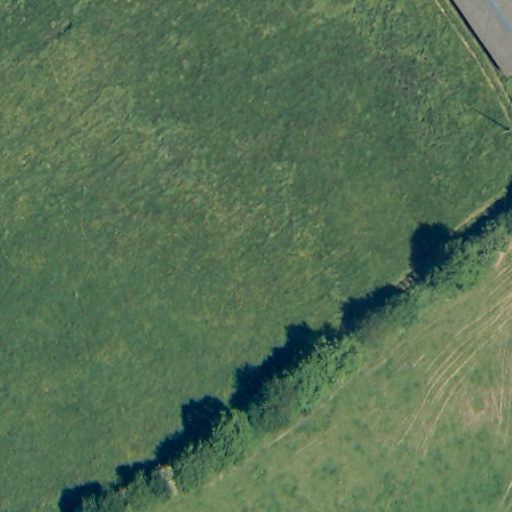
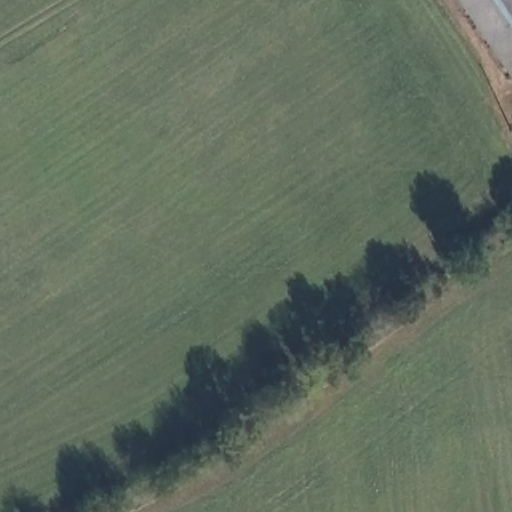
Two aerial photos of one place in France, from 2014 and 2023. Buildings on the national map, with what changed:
unchanged [(510,76),(458,0),(512,0),(512,75),(510,76)]

